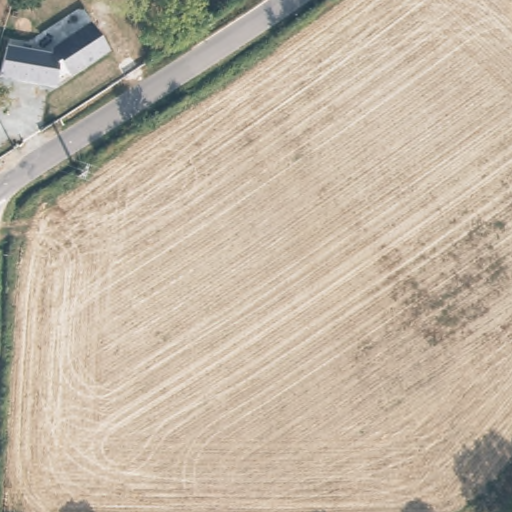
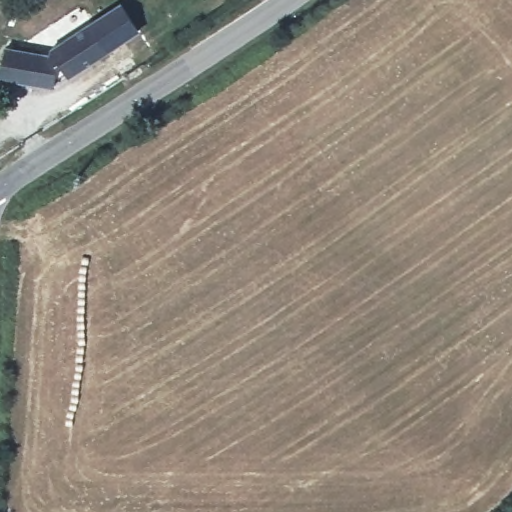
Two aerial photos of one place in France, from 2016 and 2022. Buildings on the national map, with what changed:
new [(120,3),(138,31),(94,61),(76,34),(120,3)]
unchanged [(11,60),(39,65),(39,58),(76,34),(94,61),(58,85),(55,81),(43,88),(43,96),(0,88),(0,61),(10,63),(11,60)]

